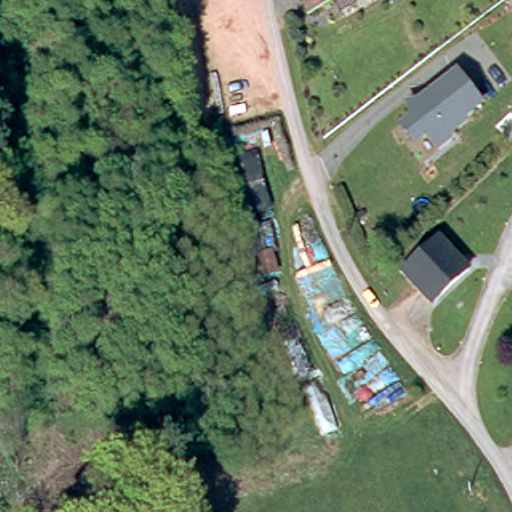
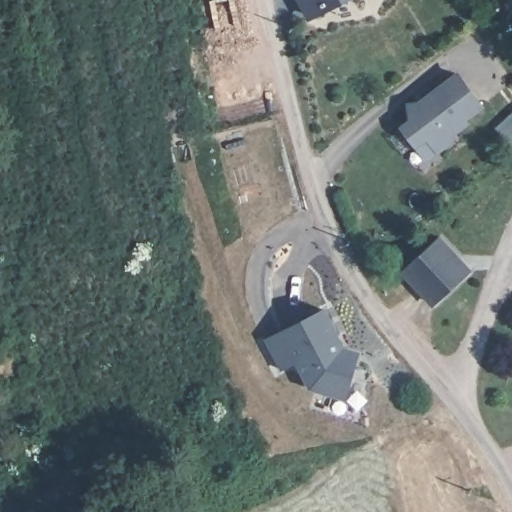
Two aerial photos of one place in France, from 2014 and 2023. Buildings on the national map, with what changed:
unchanged [(303,0),(330,0),(309,11),(303,0)]
unchanged [(458,74),(486,108),(470,119),(472,124),(454,138),(449,146),(437,153),(422,140),(415,146),(402,126),(409,121),(407,109),(458,74)]
unchanged [(472,267),(436,300),(422,287),(405,269),(442,234),(459,253),(472,267)]
new [(319,311),(338,349),(352,354),(339,398),(305,387),(292,360),(274,369),(260,341),(319,311)]

